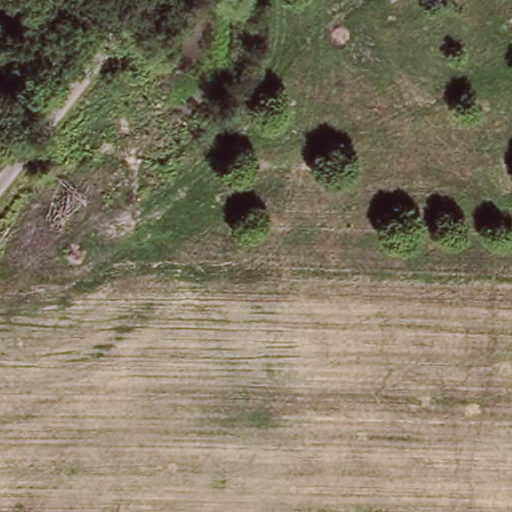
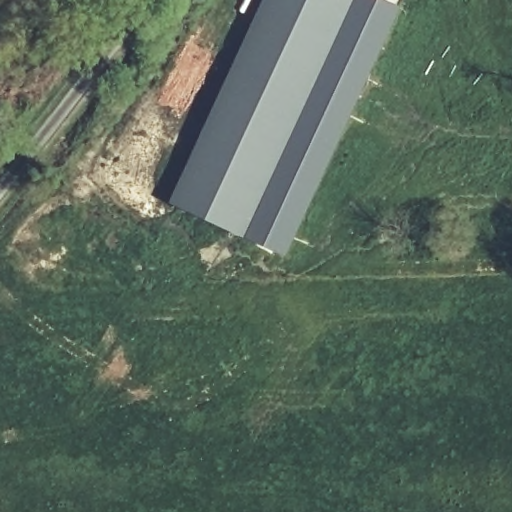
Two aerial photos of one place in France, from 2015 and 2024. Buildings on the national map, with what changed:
new [(245,239),(167,204),(263,0),(354,0),(245,239)]

